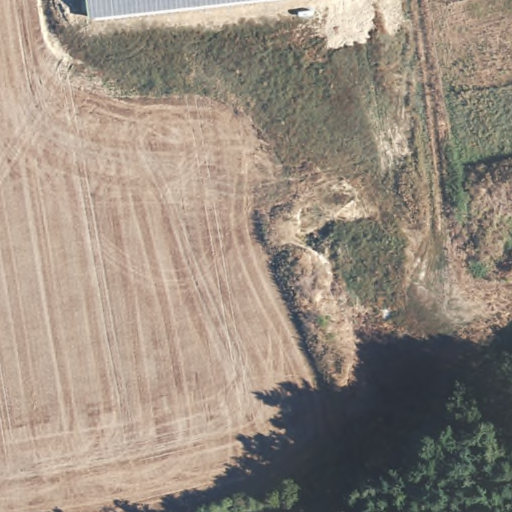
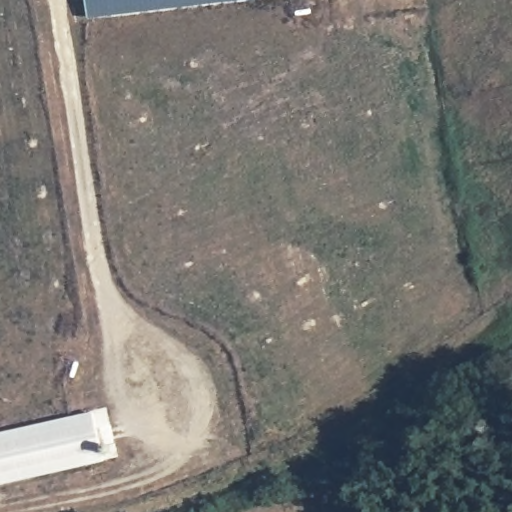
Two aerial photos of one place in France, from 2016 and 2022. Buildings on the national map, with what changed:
unchanged [(89,19),(88,0),(258,0),(89,19)]
new [(93,413),(105,464),(0,487),(0,434),(93,413)]

